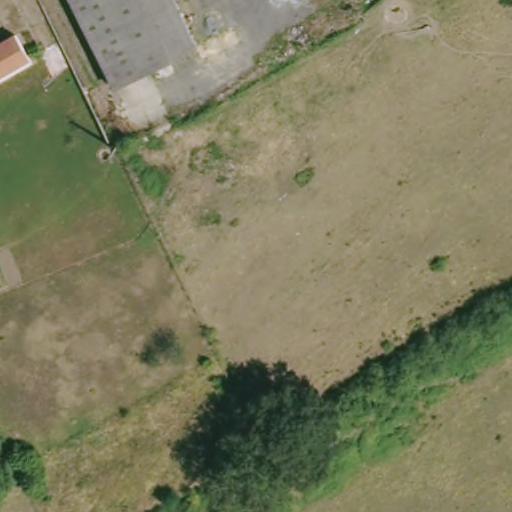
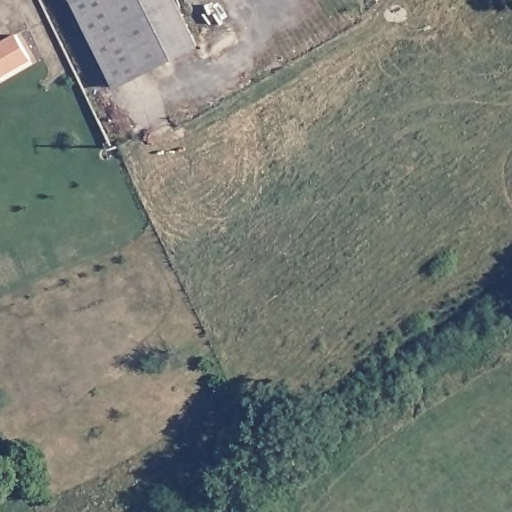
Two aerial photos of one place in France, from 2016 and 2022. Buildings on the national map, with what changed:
unchanged [(115,89),(70,0),(172,0),(201,48),(115,89)]
unchanged [(21,54),(0,65),(0,36),(9,31),(21,54)]

